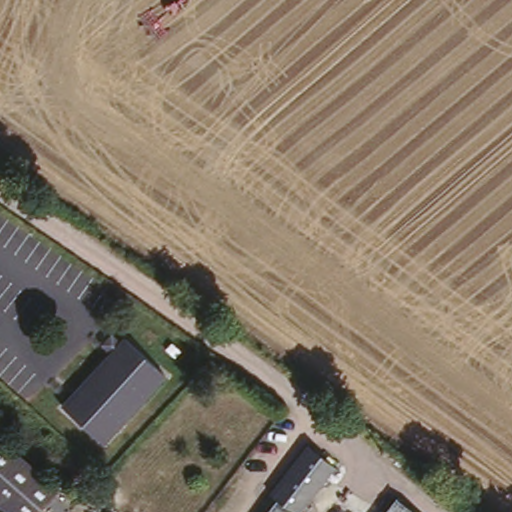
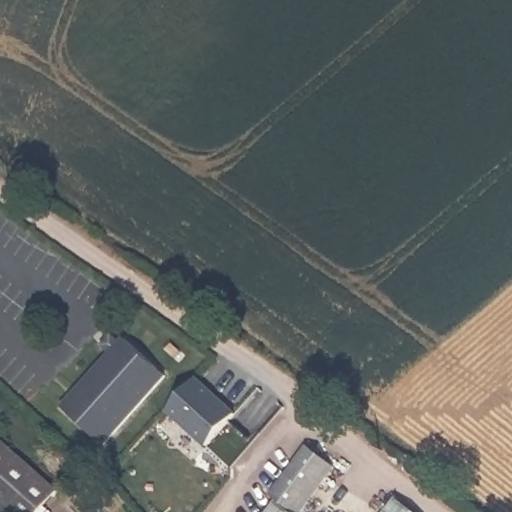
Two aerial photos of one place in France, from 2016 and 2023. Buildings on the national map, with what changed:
unchanged [(103,445),(62,408),(106,358),(93,346),(106,332),(118,344),(122,340),(164,375),(103,445)]
new [(237,411),(205,448),(166,413),(197,378),(237,411)]
unchanged [(61,488),(41,512),(9,512),(0,504),(0,436),(61,488)]
unchanged [(302,512),(266,512),(267,510),(254,501),(292,447),(328,474),(302,512)]
unchanged [(390,500),(407,512),(382,512),(390,500)]

